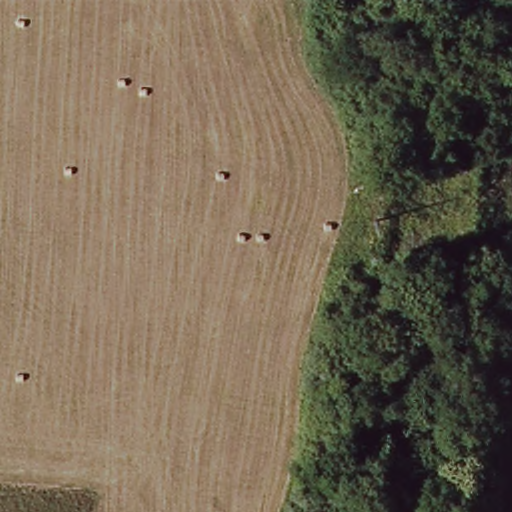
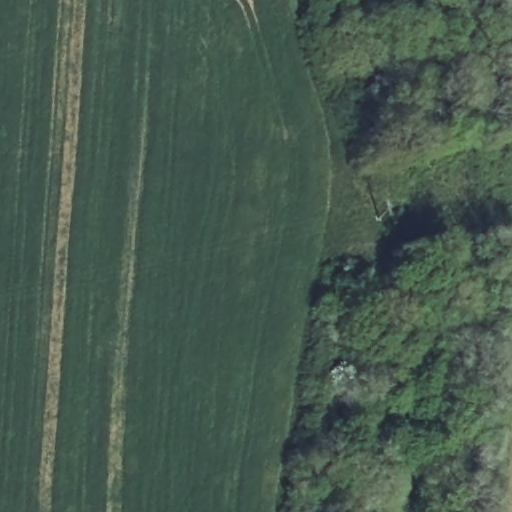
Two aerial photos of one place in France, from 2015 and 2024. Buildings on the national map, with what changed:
[]

